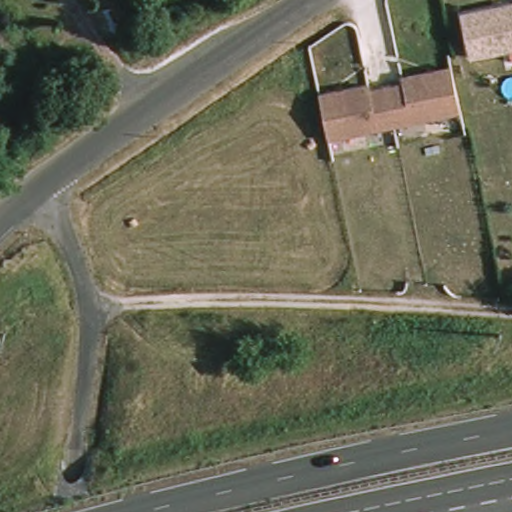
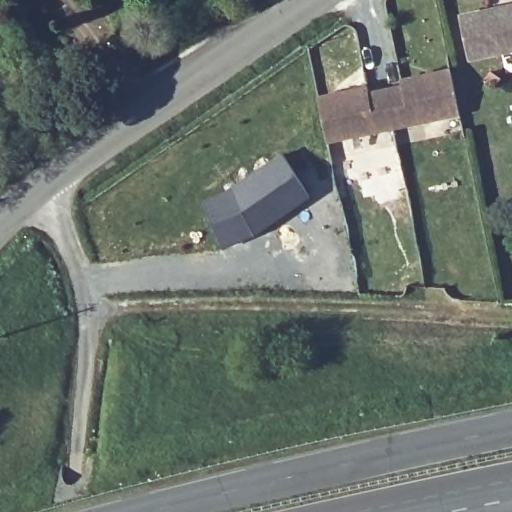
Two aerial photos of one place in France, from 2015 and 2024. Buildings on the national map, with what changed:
unchanged [(476,64),(466,21),(512,11),(512,56),(476,64)]
unchanged [(319,92),(321,92),(368,82),(370,89),(403,81),(402,75),(451,65),(461,109),(333,137),(328,137),(319,92)]
new [(226,196),(234,202),(270,176),(265,167),(281,156),(309,198),(255,237),(222,251),(203,206),(226,196)]

